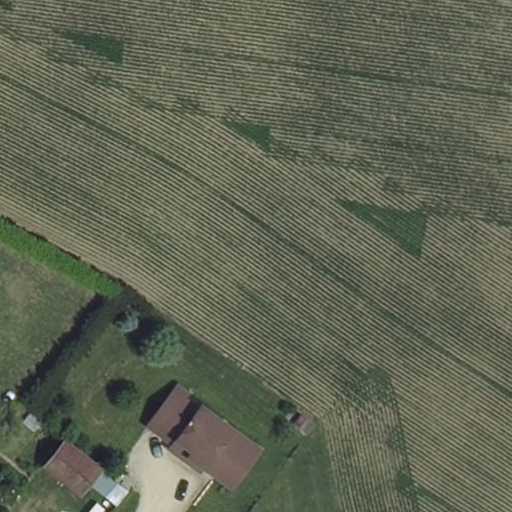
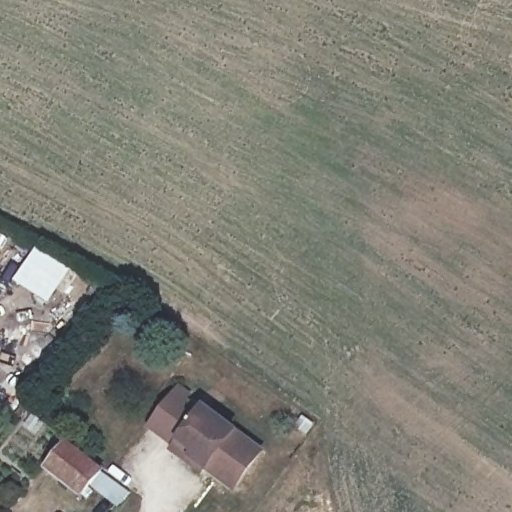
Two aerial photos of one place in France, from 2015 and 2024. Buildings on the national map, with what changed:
new [(71,270),(50,302),(16,280),(43,248),(71,270)]
unchanged [(232,482),(220,473),(205,461),(190,450),(187,455),(171,442),(174,438),(149,419),(178,380),(190,388),(185,395),(199,405),(202,401),(248,435),(260,445),(232,482)]
unchanged [(85,498),(43,462),(66,437),(107,471),(85,498)]

